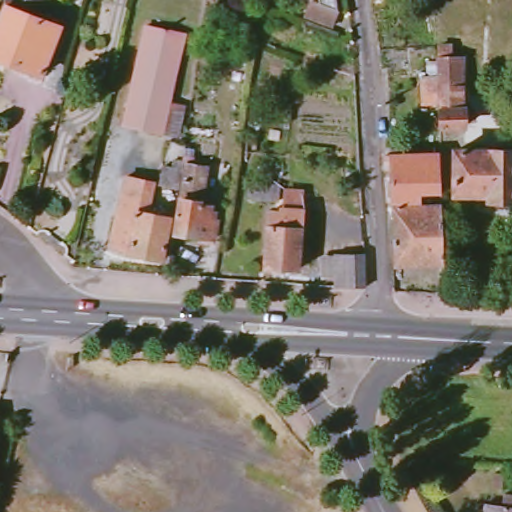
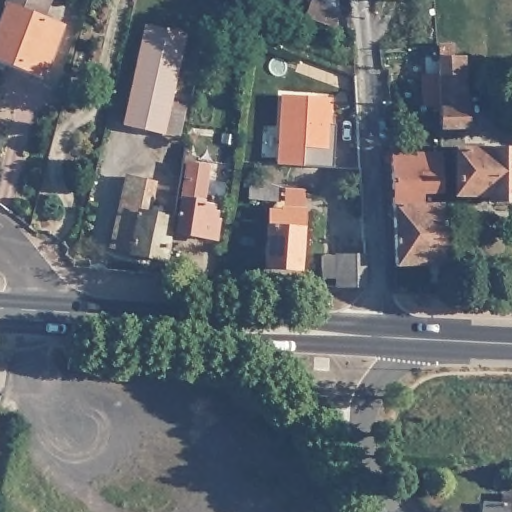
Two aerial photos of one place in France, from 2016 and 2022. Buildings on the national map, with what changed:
unchanged [(44,20),(63,28),(44,76),(0,59),(0,25),(10,0),(51,0),(44,20)]
unchanged [(324,3),(323,0),(344,0),(346,12),(341,27),(313,17),(318,1),(324,3)]
unchanged [(180,137),(165,134),(124,124),(148,27),(187,36),(172,104),(187,107),(180,137)]
unchanged [(430,114),(428,88),(443,87),(443,70),(442,57),(456,56),(457,69),(471,68),(471,93),(468,93),(469,119),(472,119),(472,137),(446,137),(445,114),(430,114)]
new [(335,98),(333,170),(277,163),(284,95),(335,98)]
unchanged [(496,201),(496,197),(462,196),(463,151),(512,152),(512,201),(496,201)]
unchanged [(451,264),(403,265),(397,156),(447,154),(451,264)]
unchanged [(183,167),(179,192),(159,189),(163,172),(172,173),(173,165),(183,167)]
unchanged [(188,169),(208,172),(202,209),(214,211),(212,224),(218,225),(216,244),(177,238),(188,169)]
unchanged [(156,187),(149,219),(172,224),(164,265),(131,258),(131,255),(112,251),(127,181),(156,187)]
unchanged [(270,202),(285,203),(285,199),(304,201),(300,260),(266,257),(270,202)]
unchanged [(357,287),(326,287),(325,257),(356,256),(357,287)]
unchanged [(491,512),(492,507),(508,508),(511,496),(512,496),(512,512),(491,512)]

